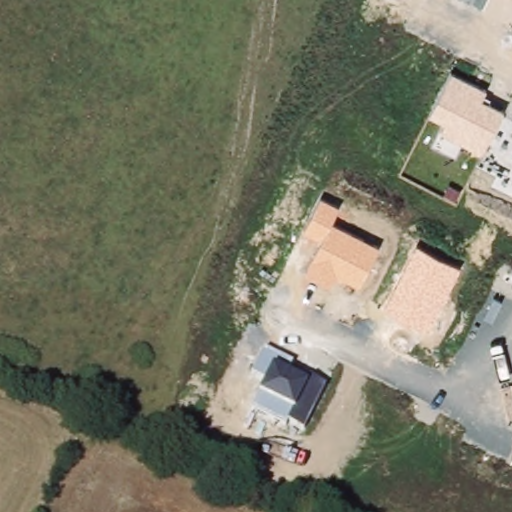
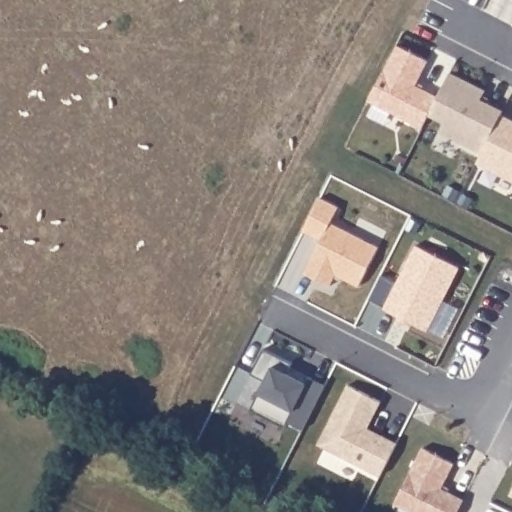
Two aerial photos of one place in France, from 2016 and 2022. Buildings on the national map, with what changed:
new [(429,61),(417,84),(439,94),(429,115),(421,128),(368,102),(397,45),(429,61)]
unchanged [(451,71),(488,90),(483,100),(504,111),(482,153),(477,150),(440,132),(445,123),(429,115),(451,71)]
new [(502,115),(512,120),(512,181),(476,164),(482,153),(502,115)]
unchanged [(323,240),(303,230),(320,196),(340,206),(331,223),(379,247),(359,286),(334,274),(329,285),(304,273),(323,240)]
unchanged [(418,245),(460,268),(428,329),(386,309),(418,245)]
unchanged [(253,408),(265,380),(252,373),(264,349),(272,351),(294,362),(289,373),(307,382),(310,376),(327,386),(303,430),(253,408)]
new [(400,442),(384,475),(321,444),(351,384),(384,401),(371,427),(385,435),(400,442)]
new [(426,447),(458,463),(445,488),(467,499),(461,512),(417,512),(399,503),(426,447)]
new [(512,491),(512,495),(511,494),(512,491)]

